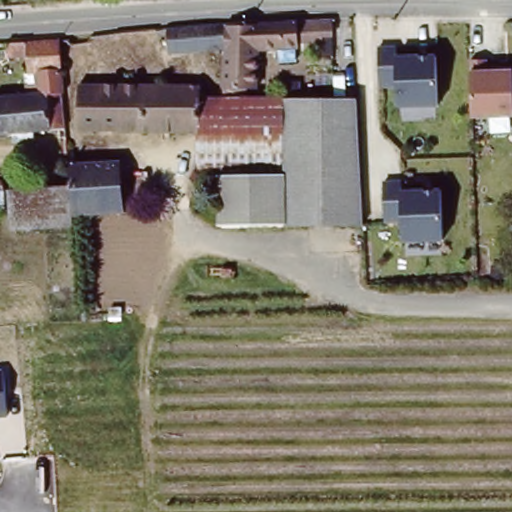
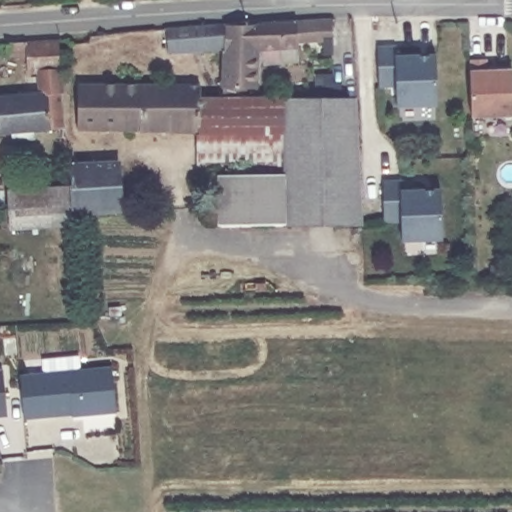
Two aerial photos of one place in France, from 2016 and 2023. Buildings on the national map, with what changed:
unchanged [(332,36),(322,37),(322,45),(299,46),(299,50),(257,52),(257,91),(249,92),(249,104),(224,104),(224,91),(225,52),(226,27),(332,23),(332,36)]
unchanged [(225,52),(170,56),(168,33),(226,27),(225,52)]
unchanged [(60,120),(65,120),(66,133),(35,135),(35,142),(13,144),(13,137),(0,138),(0,99),(41,96),(39,73),(30,73),(28,59),(7,60),(6,46),(59,42),(65,110),(59,110),(60,120)]
unchanged [(397,42),(397,55),(437,55),(438,105),(396,105),(395,85),(377,85),(377,42),(397,42)]
unchanged [(485,55),(485,68),(512,67),(512,115),(470,116),(469,55),(485,55)]
unchanged [(201,104),(200,137),(77,131),(79,86),(202,90),(201,104)]
unchanged [(287,106),(287,176),(200,175),(200,137),(201,104),(224,104),(287,106)]
unchanged [(294,230),(200,231),(199,181),(287,180),(287,176),(287,106),(359,105),(360,225),(360,230),(294,230)]
unchanged [(120,167),(124,217),(75,222),(72,190),(70,170),(120,167)]
unchanged [(401,175),(401,189),(442,186),(442,240),(402,240),(401,222),(382,222),(381,176),(401,175)]
unchanged [(0,193),(0,186),(4,185),(5,192),(0,193)]
unchanged [(12,236),(9,195),(72,190),(75,222),(76,230),(12,236)]
new [(112,368),(117,410),(83,414),(83,412),(25,417),(21,376),(112,368)]
unchanged [(7,413),(0,414),(0,370),(2,370),(7,413)]

